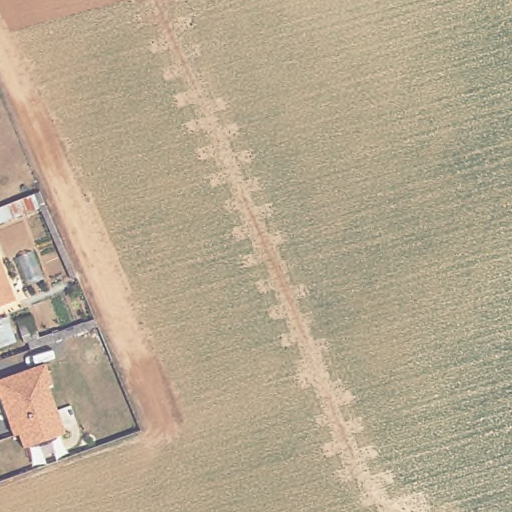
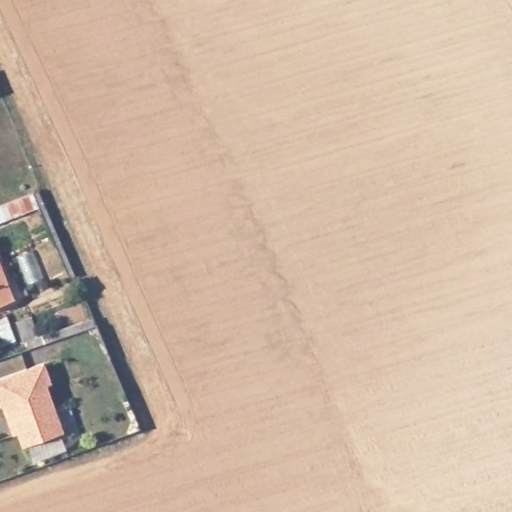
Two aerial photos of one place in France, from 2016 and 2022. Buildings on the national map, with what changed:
unchanged [(39,211),(0,226),(0,208),(33,196),(39,211)]
unchanged [(0,307),(0,267),(13,301),(0,307)]
unchanged [(48,388),(63,434),(22,448),(18,434),(13,436),(0,400),(0,380),(45,364),(52,386),(48,388)]

